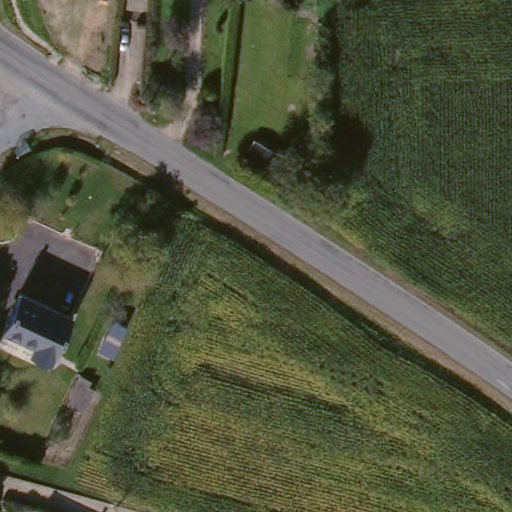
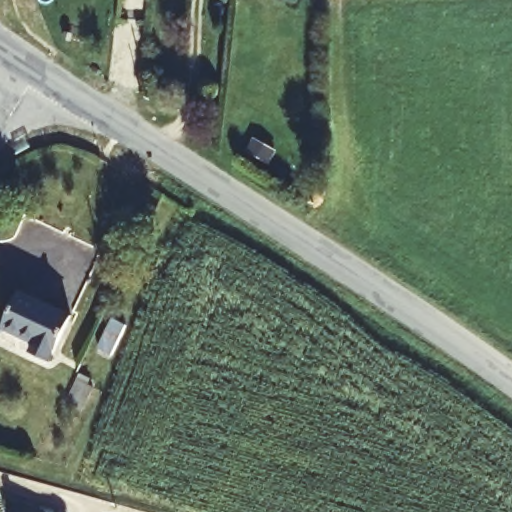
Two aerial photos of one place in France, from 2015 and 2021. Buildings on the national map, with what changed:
unchanged [(20,292),(71,316),(50,361),(31,352),(35,343),(4,329),(10,315),(20,292)]
unchanged [(96,348),(110,319),(123,325),(109,355),(96,348)]
unchanged [(68,402),(79,381),(93,388),(82,410),(68,402)]

